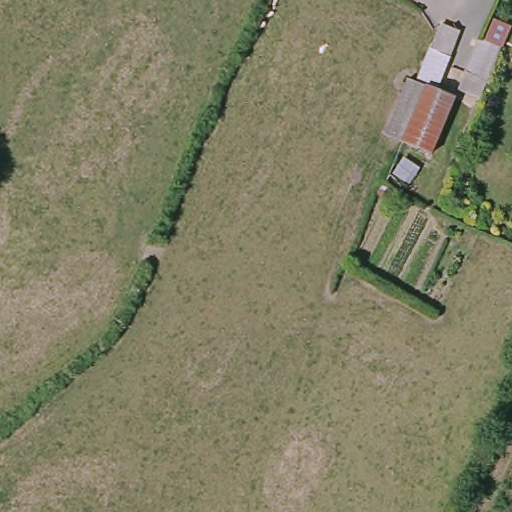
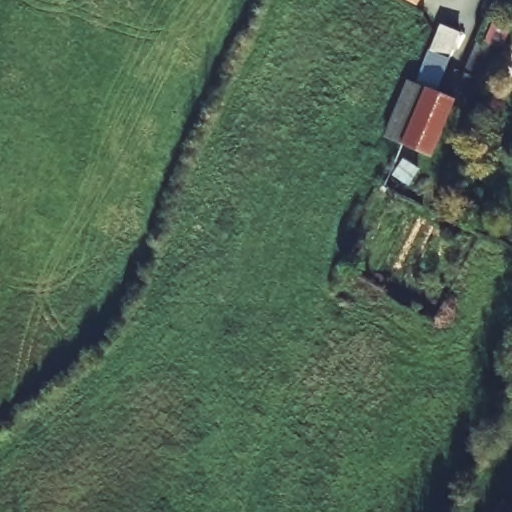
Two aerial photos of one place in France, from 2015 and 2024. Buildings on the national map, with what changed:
unchanged [(418,0),(421,0),(420,1),(418,0)]
unchanged [(492,0),(501,0),(483,37),(502,46),(488,76),(484,85),(459,76),(491,2),(492,0)]
unchanged [(451,36),(428,92),(410,86),(434,29),(451,36)]
unchanged [(410,86),(428,92),(446,100),(423,152),(387,138),(410,86)]

